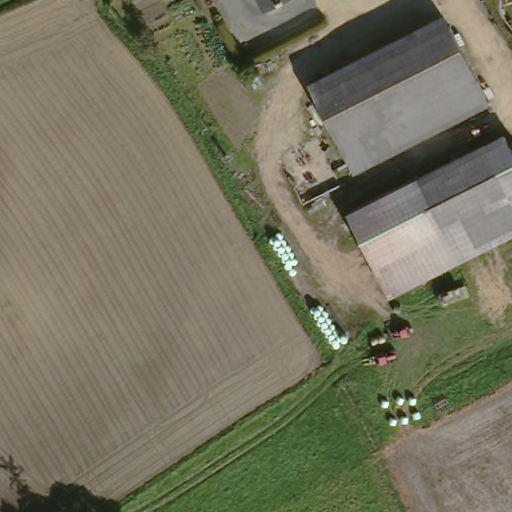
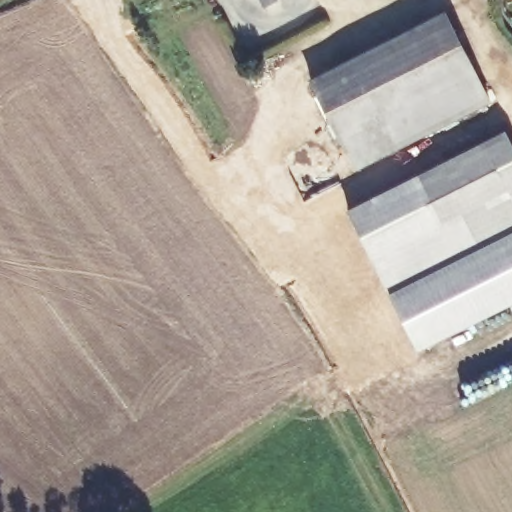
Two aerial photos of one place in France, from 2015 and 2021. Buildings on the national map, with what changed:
unchanged [(260,0),(280,0),(264,8),(260,0)]
unchanged [(309,83),(441,15),(470,70),(338,139),(309,83)]
unchanged [(470,70),(485,99),(395,146),(352,167),(338,139),(470,70)]
unchanged [(391,297),(348,212),(503,133),(512,151),(512,236),(391,297)]
new [(512,236),(512,306),(418,353),(391,297),(512,236)]

